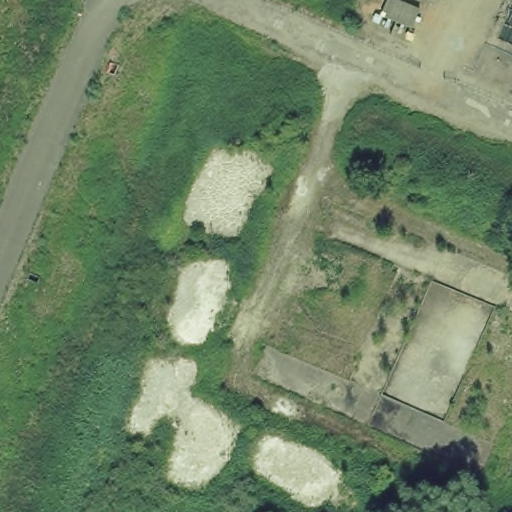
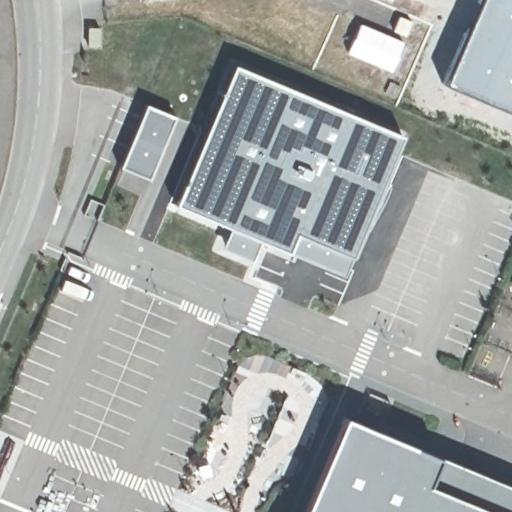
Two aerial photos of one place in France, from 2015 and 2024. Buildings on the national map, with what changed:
demolished [(382,12),(388,0),(408,0),(420,6),(412,26),(382,12)]
new [(512,0),(512,112),(442,82),(477,0),(512,0)]
new [(358,21),(391,34),(393,31),(391,30),(398,14),(413,21),(405,37),(402,36),(400,39),(402,40),(389,71),(344,52),(358,21)]
new [(87,26),(98,27),(98,45),(86,45),(87,26)]
new [(233,63),(404,133),(388,180),(344,269),(338,267),(337,268),(334,267),(339,255),(311,242),(308,250),(311,251),(310,257),(235,230),(173,202),(233,63)]
new [(145,103),(175,116),(148,179),(118,166),(145,103)]
new [(343,415),(431,452),(439,456),(512,486),(512,512),(302,512),(343,415)]

